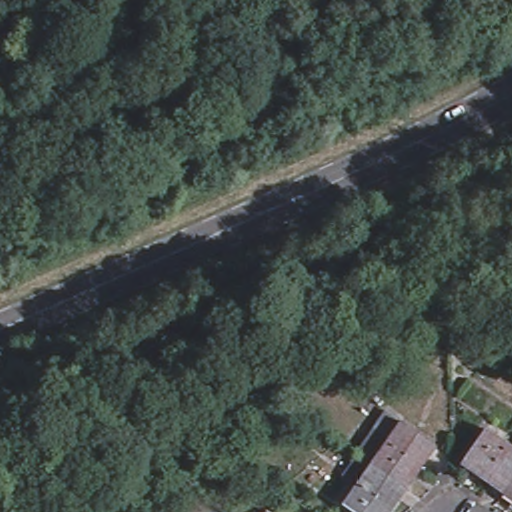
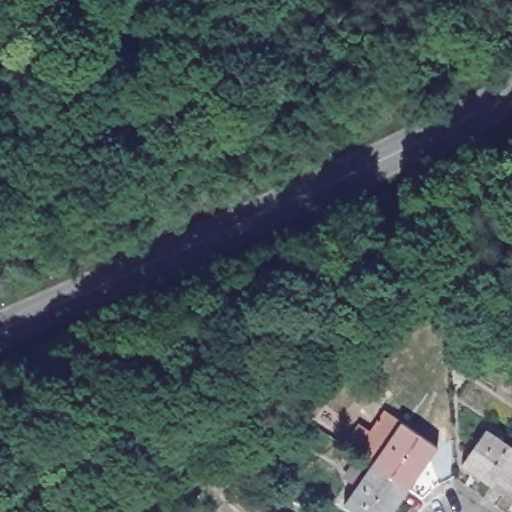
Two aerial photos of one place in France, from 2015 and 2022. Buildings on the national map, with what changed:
unchanged [(447,345),(461,333),(480,345),(469,360),(447,345)]
unchanged [(433,444),(405,487),(370,463),(399,422),(433,444)]
unchanged [(503,491),(463,463),(489,427),(512,443),(512,479),(503,491)]
unchanged [(389,512),(357,512),(343,503),(370,463),(405,487),(389,512)]
unchanged [(503,491),(512,479),(512,497),(503,491)]

